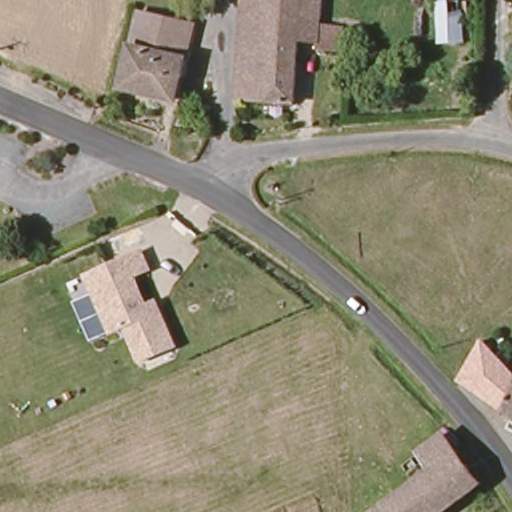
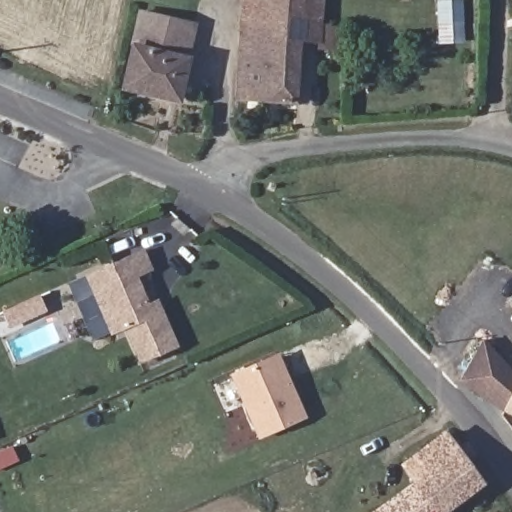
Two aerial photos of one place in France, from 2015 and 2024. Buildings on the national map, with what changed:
unchanged [(319,50),(320,42),(299,41),(294,104),(238,100),(243,0),(322,0),(321,20),(321,28),(343,29),(342,52),(319,50)]
unchanged [(441,42),(439,0),(460,0),(463,40),(441,42)]
unchanged [(193,27),(176,103),(123,91),(139,15),(193,27)]
unchanged [(143,251),(151,270),(137,277),(149,303),(156,301),(177,347),(138,364),(122,330),(110,335),(84,275),(143,251)]
unchanged [(488,344),(512,369),(512,411),(507,409),(466,381),(488,344)]
new [(303,416),(256,437),(229,375),(276,354),(303,416)]
unchanged [(417,492),(404,475),(449,444),(482,493),(455,512),(388,512),(417,492)]

